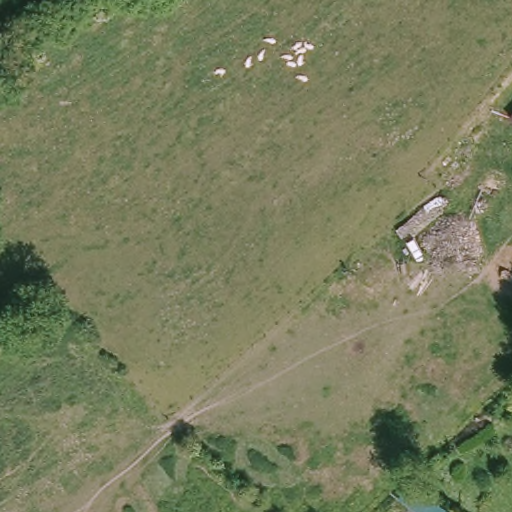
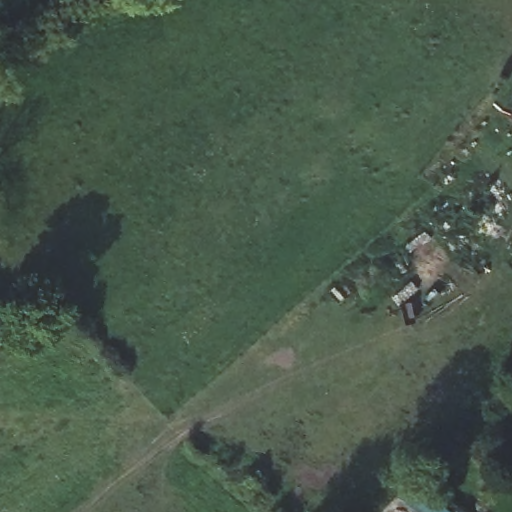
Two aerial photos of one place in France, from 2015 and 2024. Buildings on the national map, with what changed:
[]

